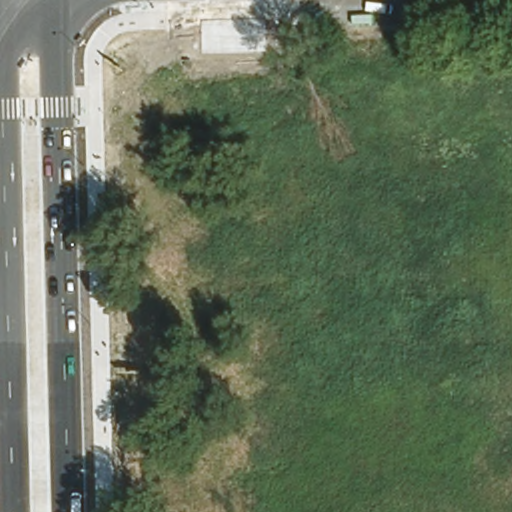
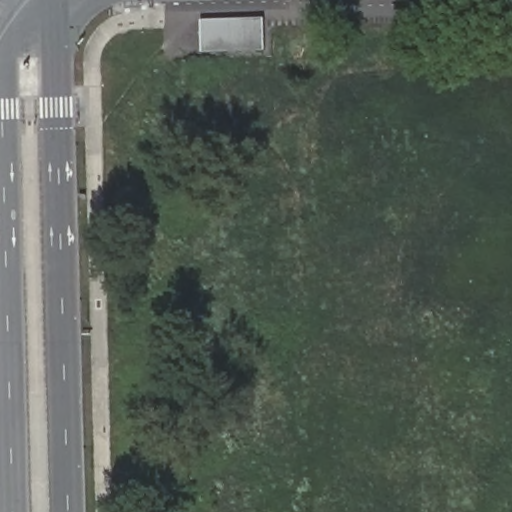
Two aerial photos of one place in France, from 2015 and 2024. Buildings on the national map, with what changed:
new [(270,20),(270,53),(207,54),(206,22),(270,20)]

